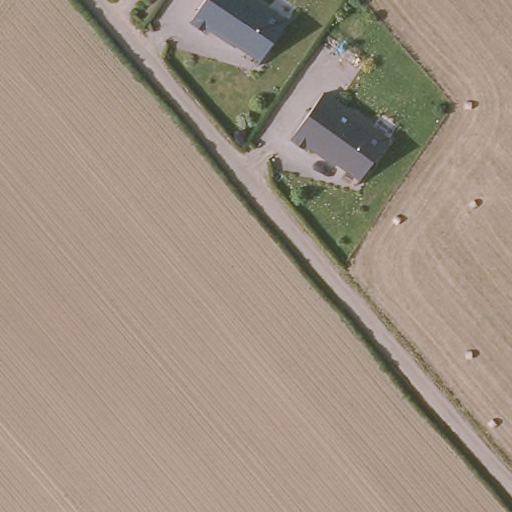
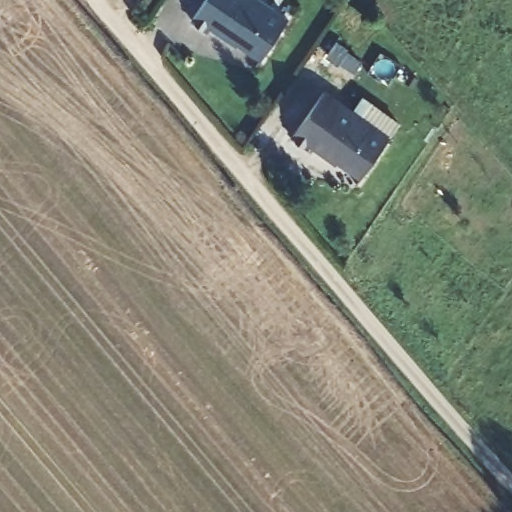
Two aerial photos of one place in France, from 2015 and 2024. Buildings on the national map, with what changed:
unchanged [(202,0),(261,0),(284,14),(258,50),(194,15),(202,0)]
unchanged [(393,135),(361,178),(296,131),(329,88),(393,135)]

